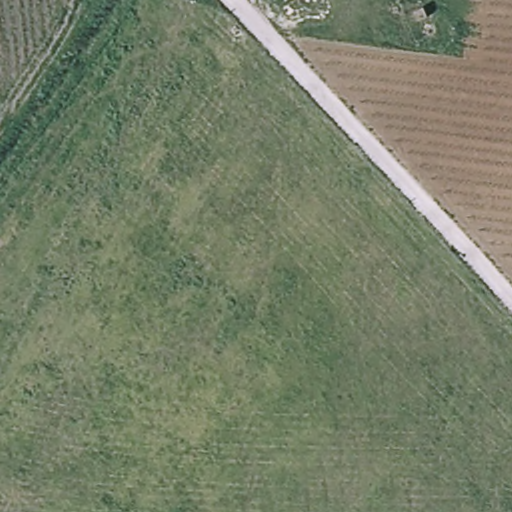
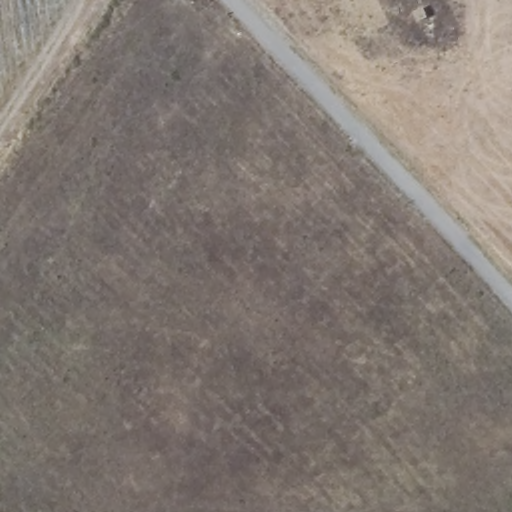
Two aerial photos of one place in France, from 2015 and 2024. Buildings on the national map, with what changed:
unchanged [(418,25),(412,14),(423,9),(428,20),(418,25)]

